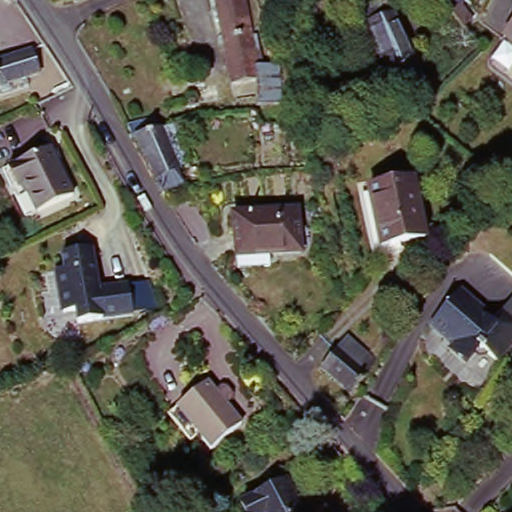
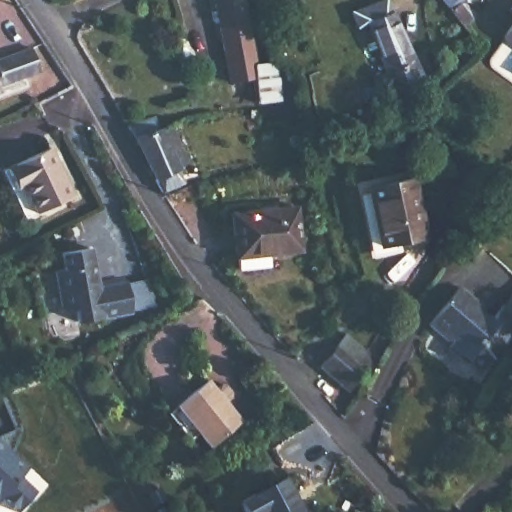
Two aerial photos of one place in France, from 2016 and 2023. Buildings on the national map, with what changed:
unchanged [(252,36),(250,36),(254,57),(256,72),(257,76),(257,81),(230,86),(214,0),(245,0),(249,22),(252,36)]
unchanged [(423,80),(422,82),(409,88),(381,90),(377,78),(391,74),(379,42),(378,39),(370,42),(365,26),(373,23),(382,19),(397,13),(424,76),(423,80)]
unchanged [(512,27),(512,44),(504,38),(512,27)]
unchanged [(21,48),(30,45),(40,70),(26,75),(28,84),(0,93),(0,55),(21,48)]
unchanged [(136,136),(135,133),(131,126),(154,120),(160,131),(163,130),(164,129),(169,127),(181,125),(188,142),(175,149),(194,188),(166,196),(139,143),(136,136)]
unchanged [(323,124),(327,130),(322,133),(318,128),(323,124)]
unchanged [(58,144),(80,193),(33,214),(10,167),(58,144)]
unchanged [(419,179),(432,238),(387,246),(375,188),(419,179)]
unchanged [(237,211),(297,206),(301,247),(268,251),(269,263),(237,267),(232,212),(237,211)]
unchanged [(92,247),(100,286),(131,279),(138,309),(82,321),(80,309),(68,311),(59,270),(67,268),(64,253),(92,247)]
unchanged [(451,288),(462,297),(452,305),(489,347),(512,328),(512,335),(492,359),(474,347),(459,364),(440,349),(443,345),(438,342),(421,327),(451,288)]
unchanged [(452,305),(462,297),(468,302),(475,308),(473,312),(484,321),(497,306),(512,324),(512,328),(489,347),(452,305)]
unchanged [(498,304),(512,314),(512,324),(497,306),(498,304)]
unchanged [(348,336),(377,362),(359,383),(330,358),(348,336)]
unchanged [(205,380),(213,390),(219,384),(224,384),(230,392),(230,397),(224,402),(240,422),(210,447),(175,406),(205,380)]
new [(28,464),(20,475),(32,488),(16,506),(1,492),(0,493),(0,442),(28,464)]
unchanged [(291,479),(308,512),(249,512),(244,503),(291,479)]
unchanged [(159,481),(165,491),(153,497),(148,487),(159,481)]

